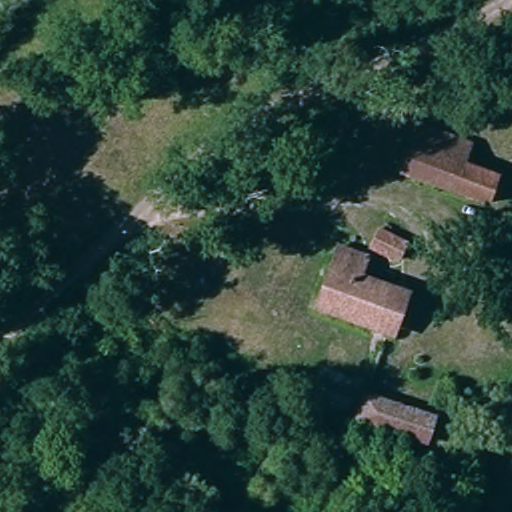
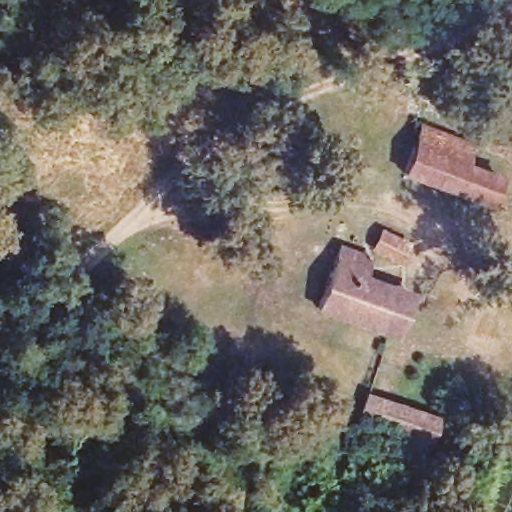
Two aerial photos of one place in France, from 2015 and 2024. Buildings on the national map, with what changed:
unchanged [(467,146),(471,148),(463,166),(451,192),(403,176),(418,129),(467,146)]
unchanged [(463,166),(495,179),(485,206),(451,192),(463,166)]
unchanged [(395,268),(373,261),(381,239),(402,247),(395,268)]
unchanged [(392,347),(379,342),(316,318),(335,270),(339,261),(368,274),(362,290),(392,302),(408,307),(392,347)]
unchanged [(422,443),(357,417),(367,394),(437,419),(428,446),(422,443)]

